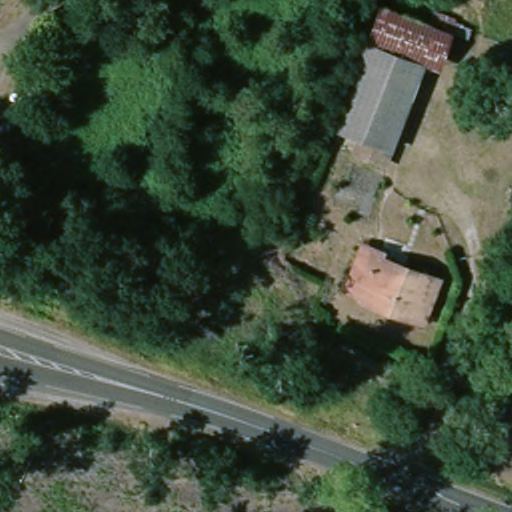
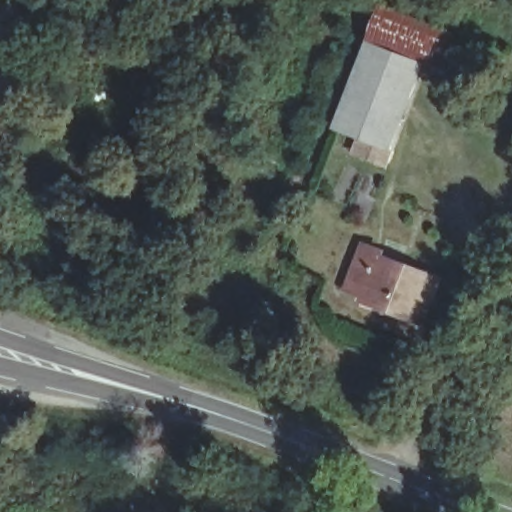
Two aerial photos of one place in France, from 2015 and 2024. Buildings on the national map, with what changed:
unchanged [(451,28),(437,64),(423,60),(403,115),(342,96),(378,3),(451,28)]
unchanged [(385,170),(345,154),(353,134),(332,124),(342,96),(403,115),(385,170)]
unchanged [(378,248),(376,252),(440,277),(421,329),(374,312),(378,304),(341,287),(362,243),(378,248)]

